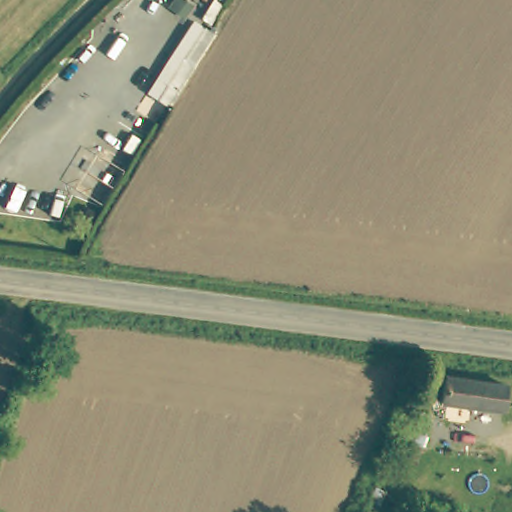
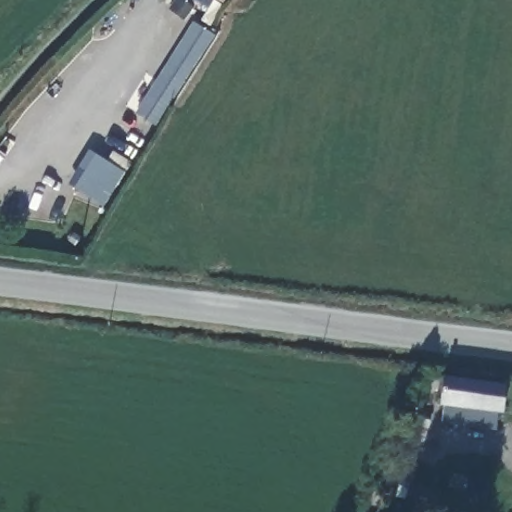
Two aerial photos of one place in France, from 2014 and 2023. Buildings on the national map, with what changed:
unchanged [(220,0),(226,0),(224,2),(220,0)]
unchanged [(193,22),(214,35),(168,107),(148,92),(193,22)]
new [(123,172),(103,204),(70,182),(89,149),(123,172)]
unchanged [(511,390),(507,418),(447,408),(452,380),(511,390)]
unchanged [(377,437),(395,441),(390,463),(372,457),(377,437)]

